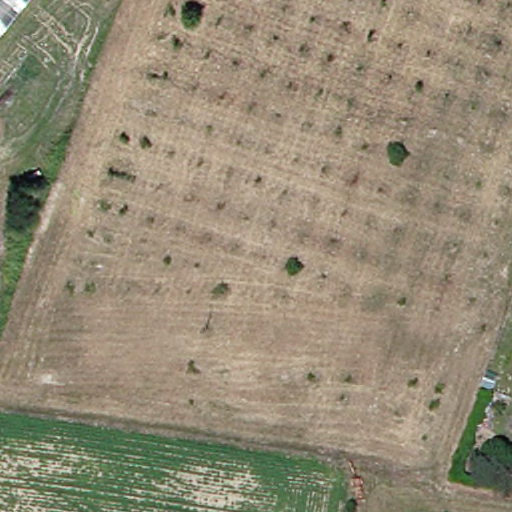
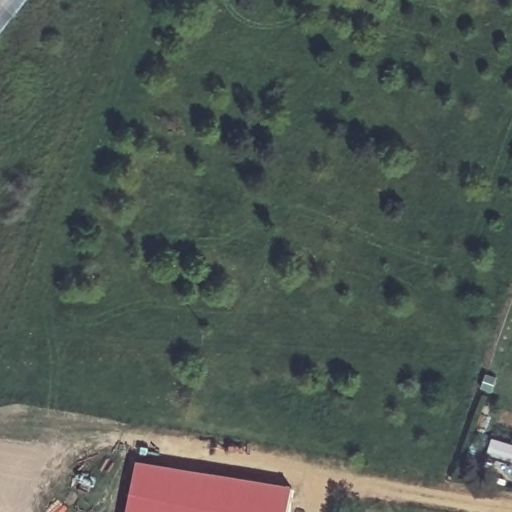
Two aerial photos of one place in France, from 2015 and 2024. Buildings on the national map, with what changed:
unchanged [(16,0),(0,20),(0,0),(16,0)]
new [(138,461),(290,489),(286,512),(128,512),(138,461)]

